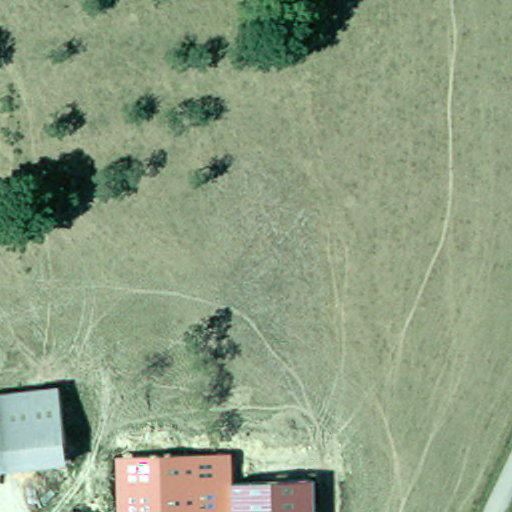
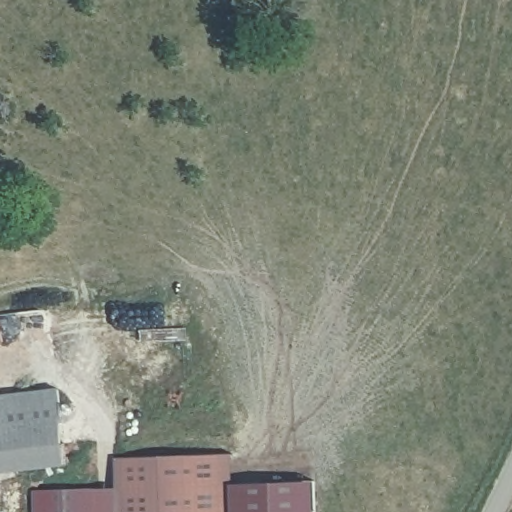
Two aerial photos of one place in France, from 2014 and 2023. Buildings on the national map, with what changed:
unchanged [(68,466),(0,474),(0,395),(59,387),(68,466)]
unchanged [(115,458),(231,452),(232,487),(233,494),(233,512),(118,512),(116,488),(115,458)]
unchanged [(316,512),(233,512),(233,494),(232,487),(315,482),(316,512)]
new [(116,488),(118,512),(32,512),(31,490),(116,488)]

